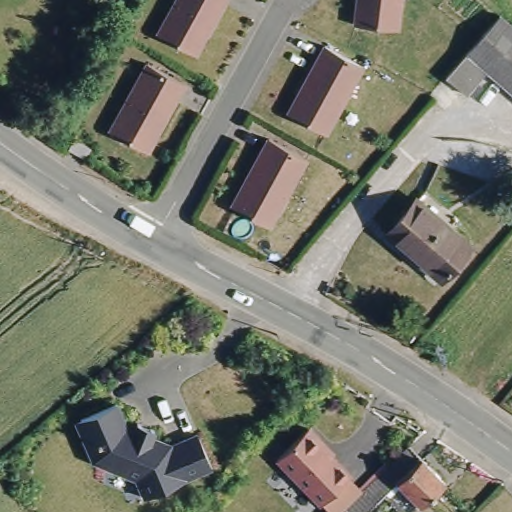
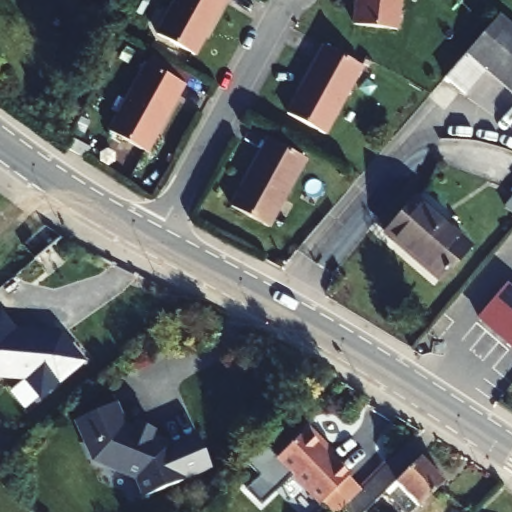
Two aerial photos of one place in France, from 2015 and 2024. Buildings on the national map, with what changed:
unchanged [(175,0),(223,0),(193,56),(156,35),(175,0)]
unchanged [(395,31),(353,26),(356,0),(399,0),(395,31)]
unchanged [(485,75),(465,99),(444,83),(465,57),(498,20),(512,32),(512,98),(485,75)]
unchanged [(323,47),(361,68),(323,136),(287,115),(323,47)]
unchanged [(145,64),(183,85),(145,153),(108,132),(145,64)]
unchanged [(73,140),(89,149),(83,158),(67,149),(73,140)]
unchanged [(267,140),(305,160),(267,228),(230,207),(267,140)]
unchanged [(512,198),(512,213),(504,207),(512,198)]
unchanged [(410,206),(462,251),(434,285),(380,240),(410,206)]
new [(478,316),(507,282),(512,287),(512,345),(478,316)]
new [(61,334),(82,361),(40,396),(25,378),(0,376),(0,313),(15,331),(49,334),(61,334)]
unchanged [(131,420),(133,417),(147,427),(145,430),(165,438),(165,440),(193,428),(207,461),(180,473),(180,474),(140,491),(131,472),(89,455),(82,438),(87,436),(76,412),(112,397),(122,421),(131,420)]
unchanged [(309,427),(325,444),(323,446),(350,474),(321,503),(277,458),(309,427)]
unchanged [(359,512),(342,512),(338,507),(403,445),(439,482),(414,506),(390,481),(359,512)]

